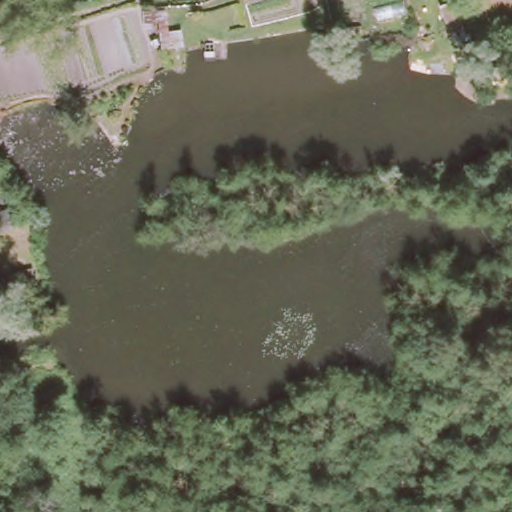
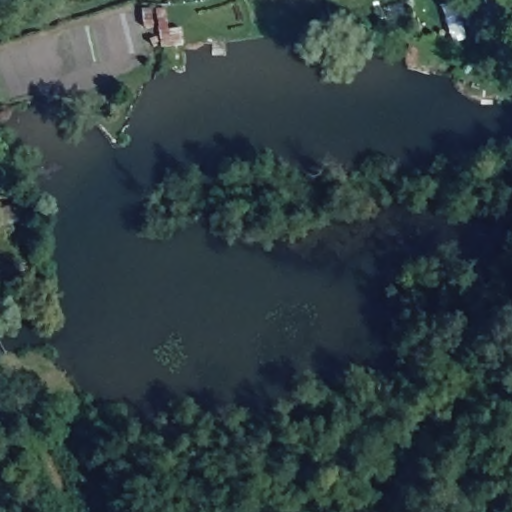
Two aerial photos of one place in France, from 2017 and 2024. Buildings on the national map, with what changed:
unchanged [(468,35),(449,41),(437,3),(447,0),(456,0),(468,35)]
unchanged [(178,45),(158,45),(158,29),(178,27),(178,45)]

